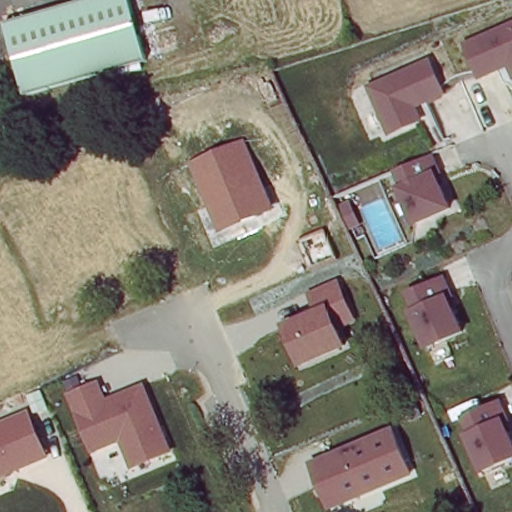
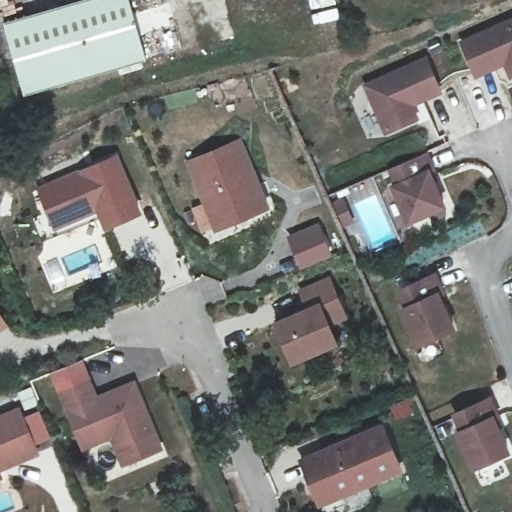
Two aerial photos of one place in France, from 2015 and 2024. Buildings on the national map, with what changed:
unchanged [(75,1),(80,0),(131,0),(147,55),(86,73),(26,91),(3,25),(75,1)]
unchanged [(468,70),(454,37),(478,26),(512,11),(512,66),(503,70),(495,52),(491,54),(484,57),(486,61),(468,70)]
unchanged [(437,91),(420,99),(417,95),(406,100),(415,117),(385,131),(365,85),(368,84),(423,59),(437,91)]
unchanged [(242,140),(272,208),(219,232),(186,164),(242,140)]
new [(103,231),(95,212),(52,230),(36,187),(116,155),(141,215),(103,231)]
unchanged [(420,155),(428,172),(425,174),(440,207),(405,224),(390,189),(394,187),(386,170),(420,155)]
unchanged [(317,226),(330,256),(303,268),(290,238),(317,226)]
unchanged [(430,291),(431,292),(446,325),(413,341),(396,306),(401,305),(397,296),(393,288),(427,272),(432,284),(435,289),(430,291)]
unchanged [(310,307),(301,291),(333,277),(352,319),(335,327),(341,345),(291,365),(275,321),(310,307)]
new [(5,323),(0,326),(0,317),(5,323)]
unchanged [(121,470),(110,441),(80,452),(54,391),(88,376),(95,392),(135,378),(164,449),(121,470)]
unchanged [(485,400),(493,416),(488,418),(504,452),(470,468),(454,433),(458,431),(451,415),(485,400)]
unchanged [(0,473),(0,416),(22,407),(42,456),(0,473)]
unchanged [(320,509),(299,458),(382,422),(406,471),(320,509)]

